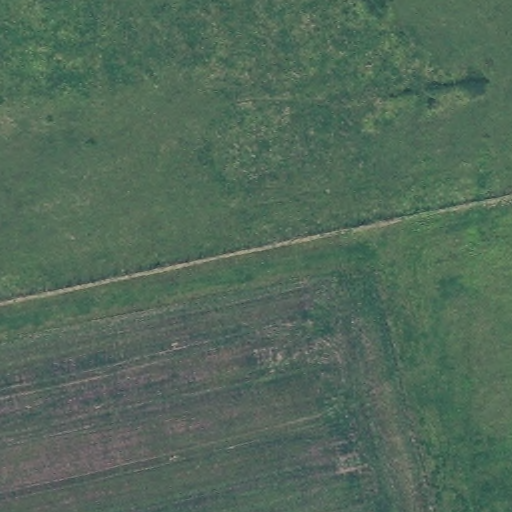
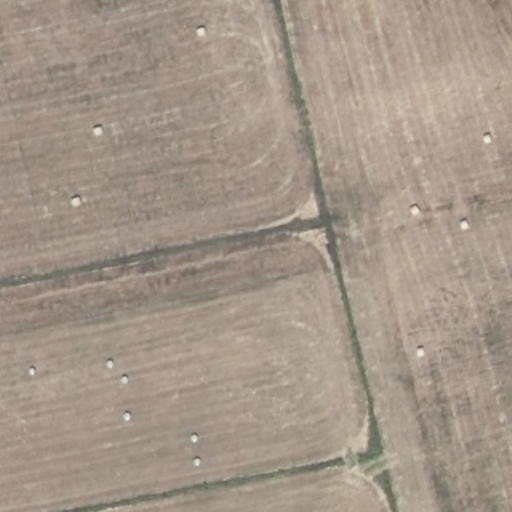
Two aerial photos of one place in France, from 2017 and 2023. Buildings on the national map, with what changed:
[]

